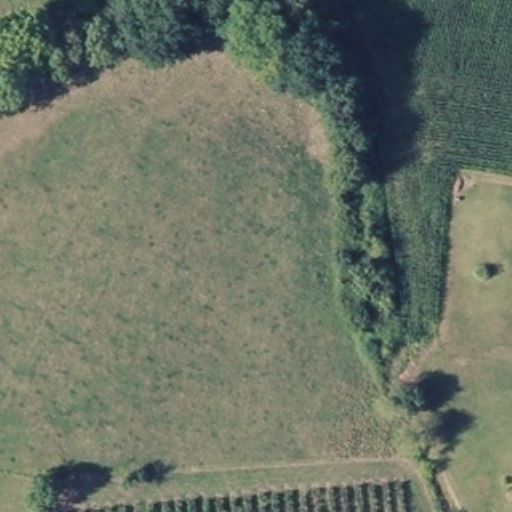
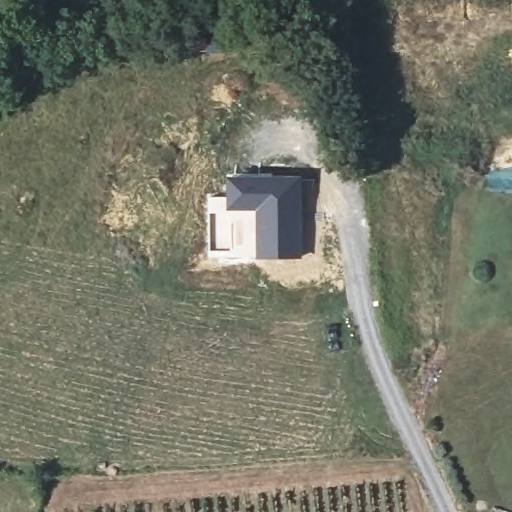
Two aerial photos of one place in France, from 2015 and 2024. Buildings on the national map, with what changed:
new [(227,175),(264,174),(304,176),(303,257),(255,258),(255,211),(226,210),(227,175)]

